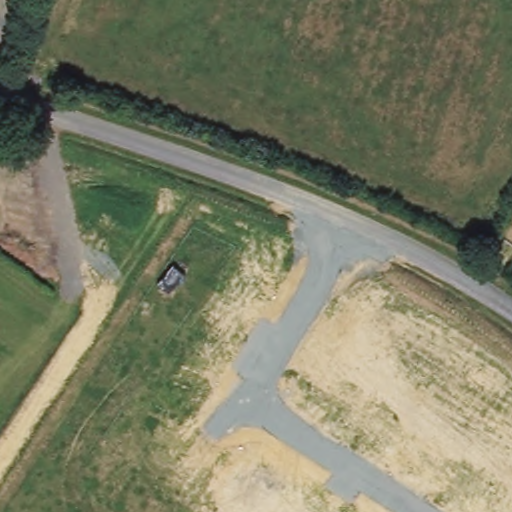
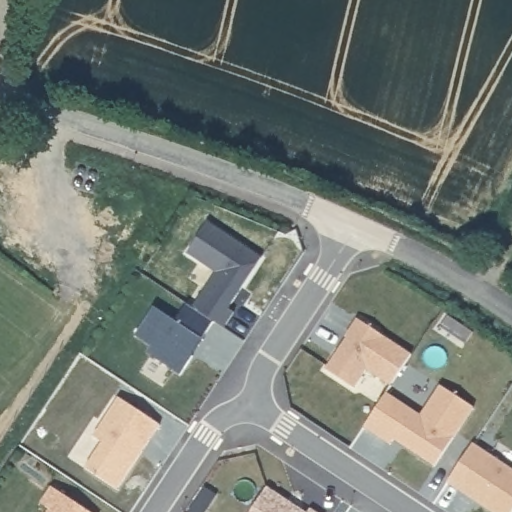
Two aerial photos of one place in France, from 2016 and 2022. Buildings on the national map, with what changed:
new [(230,309),(234,312),(224,327),(213,321),(202,340),(181,373),(149,352),(154,346),(137,334),(155,307),(178,322),(189,304),(197,310),(219,273),(189,253),(209,222),(262,257),(230,309)]
new [(367,368),(355,387),(326,368),(346,337),(344,337),(357,317),(412,352),(391,385),(367,368)]
new [(475,407),(435,466),(394,438),(391,443),(363,426),(388,392),(422,413),(440,386),(475,407)]
new [(119,397),(160,422),(117,488),(87,467),(103,442),(93,436),(119,397)]
new [(474,443),(512,467),(512,512),(493,512),(447,482),(474,443)]
new [(42,503),(53,486),(92,512),(56,512),(50,508),(42,503)]
new [(251,512),(269,486),(308,512),(251,512)]
new [(319,512),(308,512),(311,507),(319,512)]
new [(56,512),(48,512),(50,508),(56,512)]

